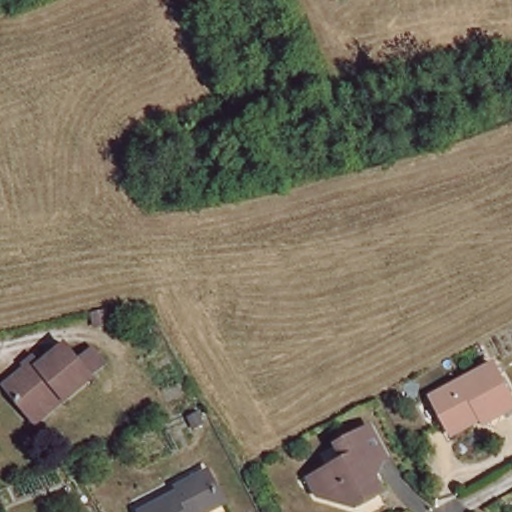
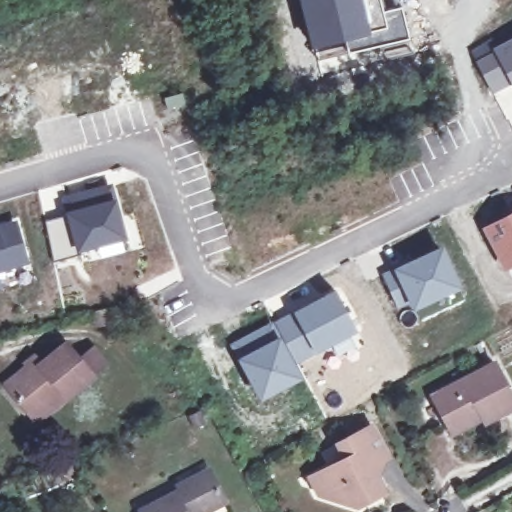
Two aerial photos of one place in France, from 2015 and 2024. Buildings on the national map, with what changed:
new [(401,5),(410,41),(318,63),(305,24),(299,0),(382,0),(384,9),(401,5)]
new [(511,84),(491,47),(512,36),(512,85),(511,84)]
new [(487,40),(491,47),(511,84),(493,94),(470,50),(487,40)]
new [(44,220),(65,214),(60,194),(113,182),(128,239),(124,241),(126,251),(95,256),(93,250),(77,255),(53,261),(44,220)]
new [(506,273),(481,227),(512,211),(512,269),(506,273)]
new [(18,218),(30,264),(0,272),(0,222),(18,218)]
new [(443,244),(460,285),(413,308),(410,303),(398,309),(381,273),(443,244)]
new [(336,289),(357,331),(333,346),(331,343),(295,364),(272,321),(336,289)]
unchanged [(109,322),(97,325),(94,312),(106,309),(109,322)]
new [(272,321),(295,364),(302,378),(259,400),(229,343),(272,321)]
unchanged [(61,398),(58,393),(28,417),(2,385),(32,361),(36,365),(62,344),(76,362),(89,351),(99,363),(85,374),(87,377),(61,398)]
unchanged [(432,395),(494,362),(512,397),(512,405),(484,421),(483,419),(454,435),(448,426),(432,395)]
unchanged [(312,474),(321,469),(346,455),(338,439),(371,422),(388,452),(372,461),(384,483),(354,499),(334,493),(329,484),(320,490),(312,474)]
unchanged [(182,490),(180,485),(209,470),(225,501),(203,512),(193,512),(192,512),(143,512),(142,510),(182,490)]

